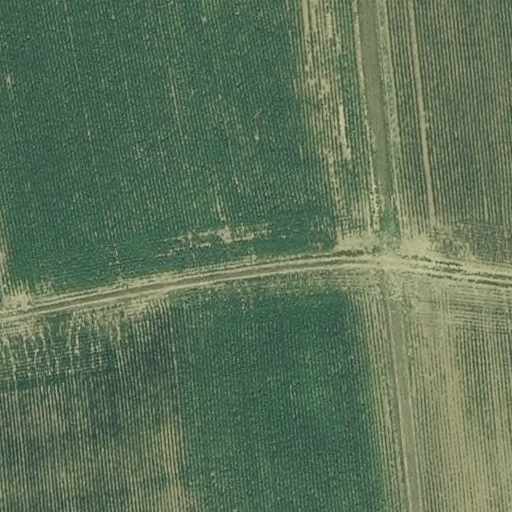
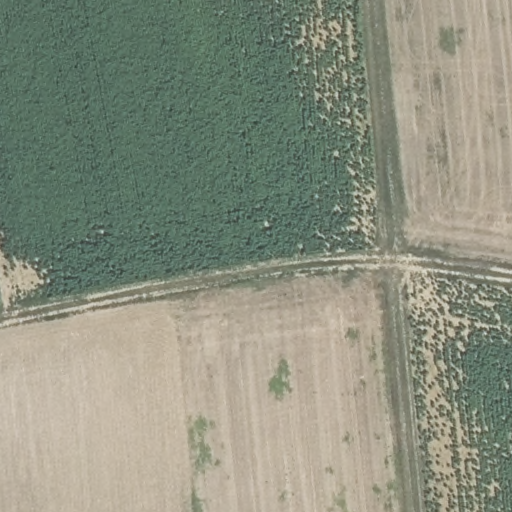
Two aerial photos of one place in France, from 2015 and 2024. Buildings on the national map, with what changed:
[]

